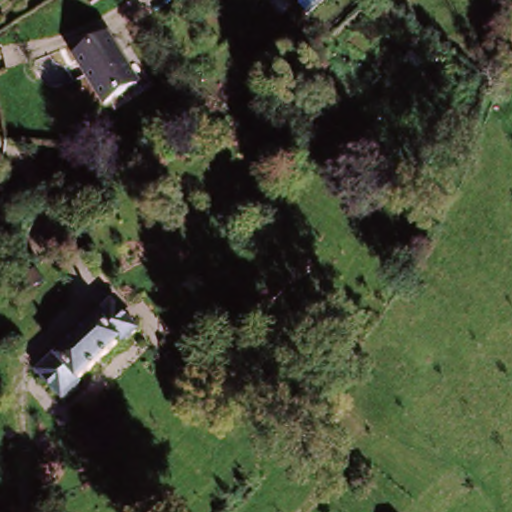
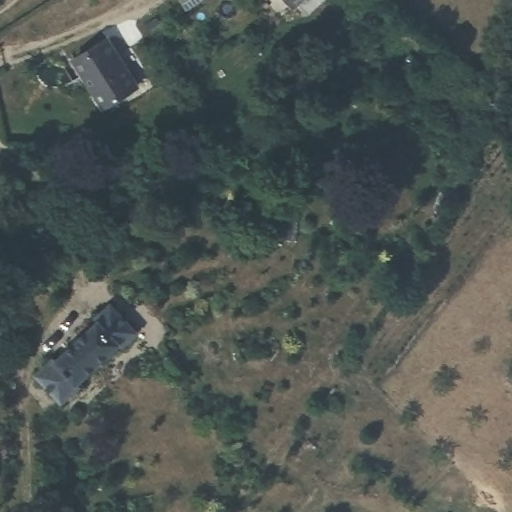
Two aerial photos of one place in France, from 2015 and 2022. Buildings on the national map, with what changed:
unchanged [(92,0),(105,0),(96,6),(92,0)]
unchanged [(282,0),(305,0),(291,11),(282,0)]
unchanged [(158,32),(147,39),(140,26),(150,20),(158,32)]
unchanged [(95,37),(128,85),(96,106),(65,58),(95,37)]
unchanged [(72,378),(74,380),(55,397),(30,370),(49,351),(52,355),(90,318),(87,316),(103,302),(130,330),(114,345),(111,342),(72,378)]
unchanged [(171,353),(184,367),(178,372),(165,358),(171,353)]

